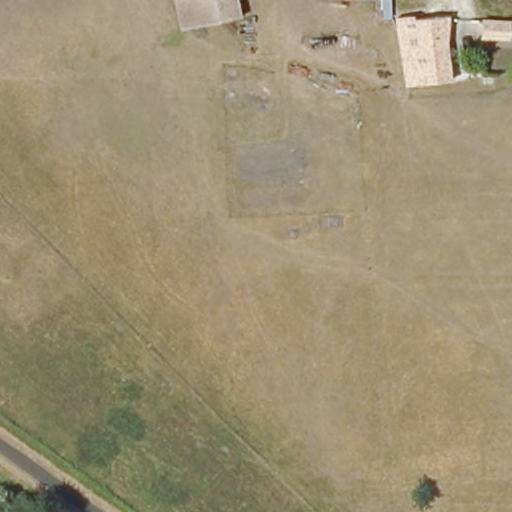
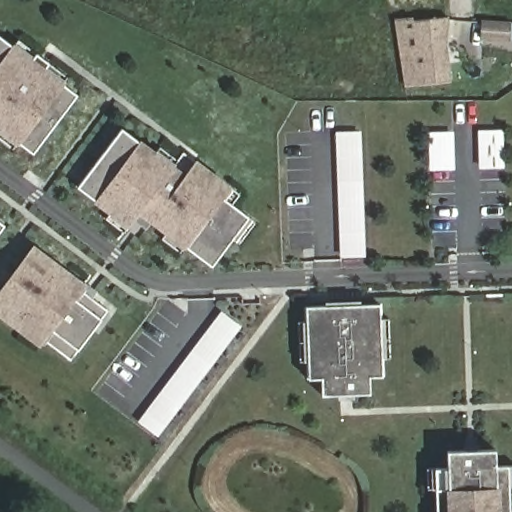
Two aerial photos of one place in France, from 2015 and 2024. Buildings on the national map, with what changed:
unchanged [(240,16),(181,27),(176,0),(237,0),(240,16)]
unchanged [(391,24),(376,24),(375,4),(330,5),(330,0),(389,0),(391,24)]
unchanged [(449,25),(447,51),(451,86),(408,91),(397,23),(422,20),(449,22),(449,25)]
unchanged [(511,38),(511,41),(481,39),(482,20),(512,23),(512,38),(511,38)]
new [(0,129),(1,128),(8,119),(0,113),(0,35),(15,46),(20,39),(38,53),(51,63),(69,77),(64,83),(46,70),(79,95),(35,153),(20,142),(14,149),(0,138),(0,129)]
new [(241,245),(234,239),(213,267),(152,221),(148,226),(136,217),(130,226),(79,187),(123,129),(156,154),(161,147),(179,160),(185,153),(231,188),(241,196),(234,205),(251,218),(257,223),(241,245)]
new [(454,167),(430,168),(429,130),(453,129),(454,167)]
new [(504,129),(505,165),(481,166),(479,129),(504,129)]
new [(336,132),(361,131),(366,256),(341,257),(336,132)]
new [(130,226),(125,233),(106,219),(111,212),(130,226)]
new [(0,231),(0,220),(5,224),(0,231)]
new [(181,253),(163,239),(168,233),(186,247),(181,253)]
new [(0,290),(34,246),(68,272),(70,270),(86,282),(81,289),(108,310),(71,359),(43,338),(38,344),(22,332),(24,330),(0,312),(0,290)]
new [(305,306),(380,303),(383,376),(370,377),(370,394),(322,395),(321,378),(308,379),(305,306)]
new [(222,311),(242,327),(158,437),(138,421),(222,311)]
new [(511,466),(512,501),(512,512),(439,512),(437,469),(450,469),(450,452),(497,450),(498,467),(511,466)]

